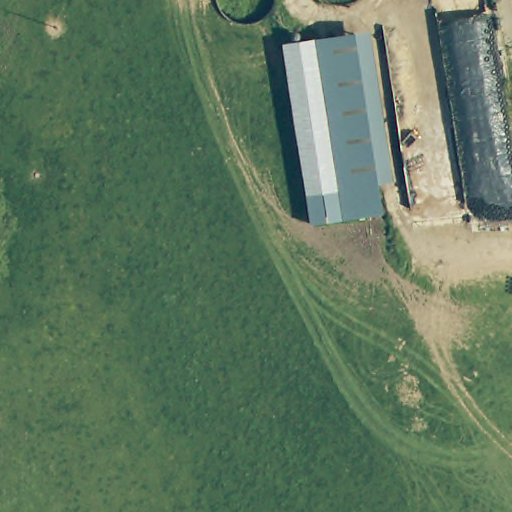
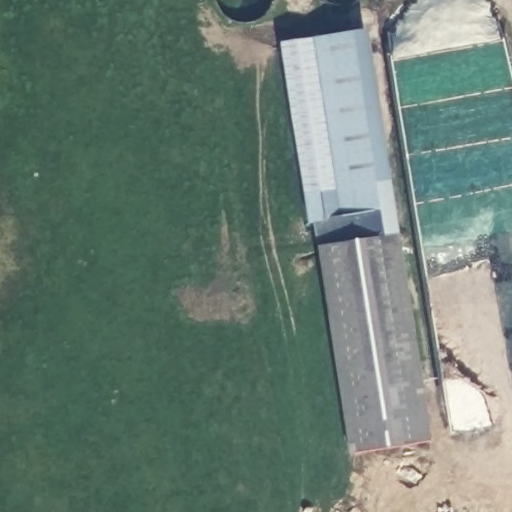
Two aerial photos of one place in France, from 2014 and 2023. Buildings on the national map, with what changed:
new [(366,31),(399,233),(431,440),(349,454),(318,246),(315,223),(363,215),(377,213),(355,64),(352,52),(350,34),(366,31)]
unchanged [(284,74),(280,44),(350,34),(352,52),(355,64),(377,213),(363,215),(307,224),(284,74)]

